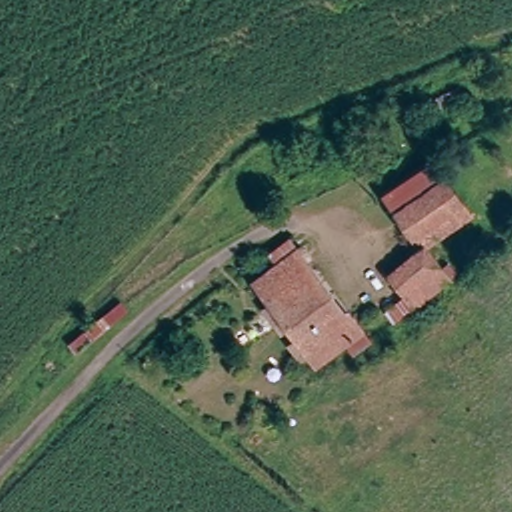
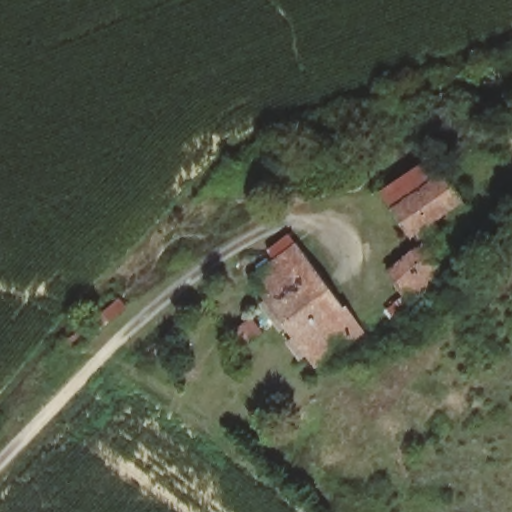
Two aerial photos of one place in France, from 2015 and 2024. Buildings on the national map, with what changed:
unchanged [(392,204),(380,187),(433,154),(443,170),(392,204)]
unchanged [(471,215),(424,245),(423,244),(415,249),(388,206),(392,204),(443,170),(471,215)]
unchanged [(273,254),(267,244),(287,228),(359,332),(311,367),(247,272),(273,254)]
unchanged [(445,281),(408,307),(383,270),(415,249),(423,244),(424,245),(445,281)]

